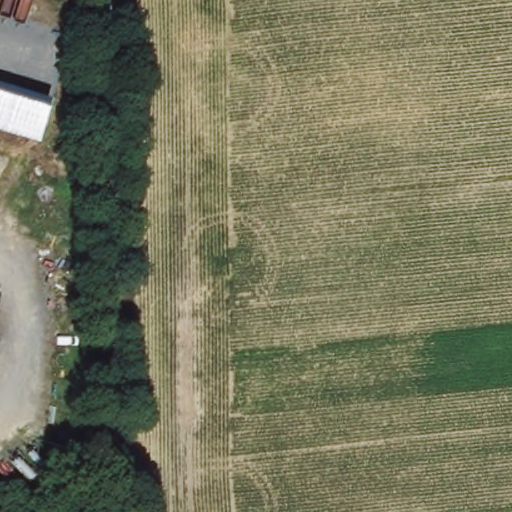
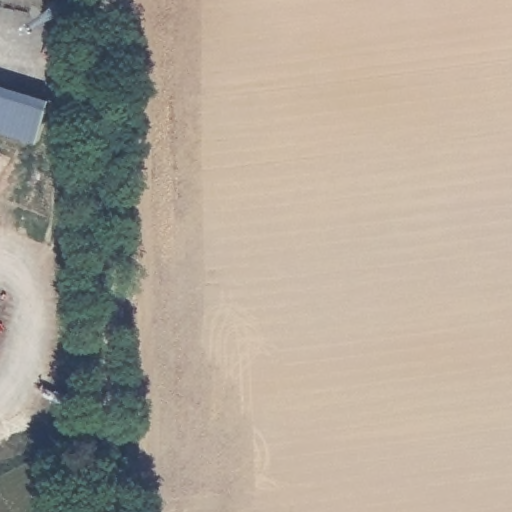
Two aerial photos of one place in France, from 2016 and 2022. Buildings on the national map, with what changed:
unchanged [(52,96),(39,145),(0,133),(0,81),(52,96)]

